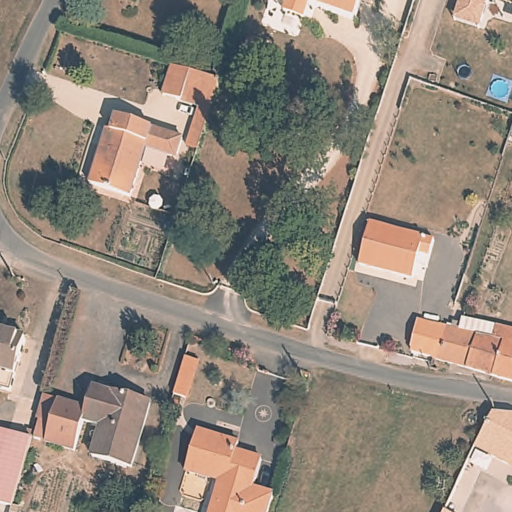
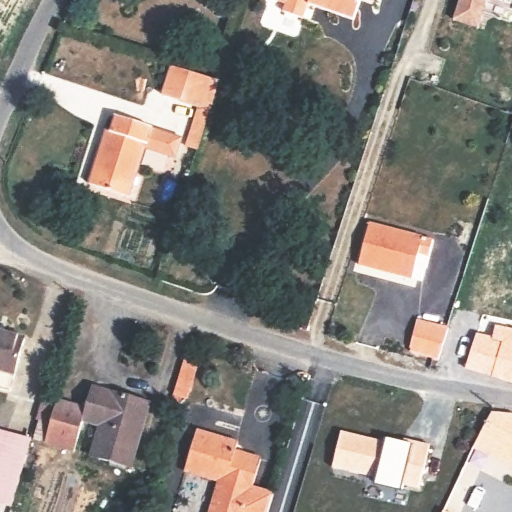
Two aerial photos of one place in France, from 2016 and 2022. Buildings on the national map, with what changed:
unchanged [(312,5),(308,18),(287,12),(290,5),(272,0),(362,0),(357,17),(312,5)]
unchanged [(453,19),(460,0),(490,0),(479,30),(453,19)]
unchanged [(493,0),(498,0),(497,1),(493,0)]
unchanged [(512,0),(512,2),(507,0),(512,0)]
unchanged [(233,99),(204,90),(201,100),(182,94),(191,65),(239,81),(233,99)]
unchanged [(104,127),(108,129),(113,115),(179,137),(174,152),(167,155),(141,146),(125,195),(85,181),(104,127)]
unchanged [(399,270),(357,258),(371,217),(436,237),(431,251),(420,249),(416,262),(412,275),(399,270)]
unchanged [(435,342),(433,351),(410,346),(411,338),(402,336),(408,315),(416,318),(420,310),(444,316),(435,342)]
unchanged [(451,316),(512,332),(512,371),(446,353),(446,355),(433,351),(435,342),(444,316),(451,318),(451,316)]
unchanged [(20,329),(12,383),(0,382),(0,327),(20,329)]
unchanged [(204,350),(192,386),(180,382),(192,345),(204,350)]
unchanged [(95,386),(153,405),(132,469),(92,456),(101,426),(85,420),(75,450),(48,441),(53,424),(36,418),(39,408),(43,394),(60,400),(87,408),(95,386)]
unchanged [(486,444),(489,437),(500,416),(502,412),(512,411),(512,458),(499,451),(486,444)]
unchanged [(244,428),(241,438),(266,446),(257,474),(278,480),(278,482),(268,512),(245,512),(243,511),(243,512),(211,512),(225,465),(193,455),(205,415),(244,428)]
unchanged [(31,438),(10,507),(0,504),(0,430),(31,438)]
new [(341,430),(385,440),(385,439),(404,443),(405,440),(428,445),(419,490),(402,485),(401,494),(374,487),(376,477),(332,470),(341,430)]
unchanged [(450,508),(457,512),(448,512),(450,508)]

